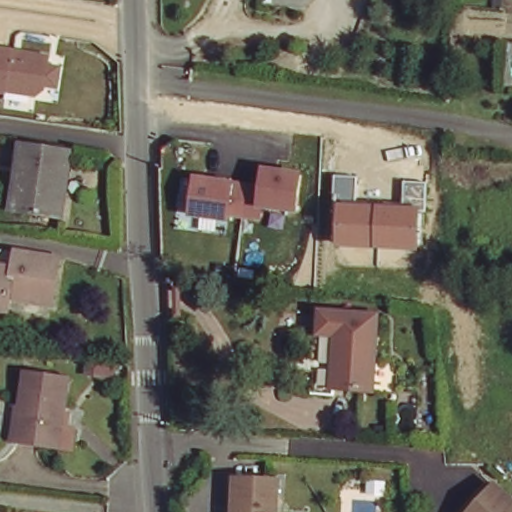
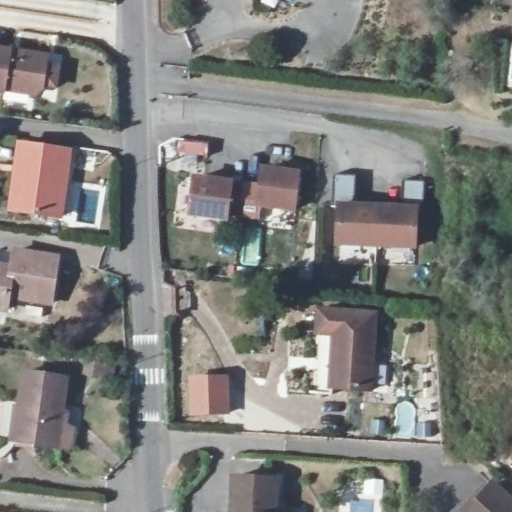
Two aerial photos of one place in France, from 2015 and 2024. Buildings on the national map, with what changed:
unchanged [(61,100),(0,92),(0,47),(63,57),(61,100)]
unchanged [(21,167),(24,143),(72,147),(69,214),(31,211),(17,210),(21,167)]
unchanged [(259,184),(263,166),(303,171),(296,212),(260,207),(257,221),(231,217),(230,222),(190,217),(193,175),(259,184)]
unchanged [(356,174),(355,202),(403,204),(404,179),(425,181),(424,212),(418,212),(415,249),(332,247),(335,173),(356,174)]
unchanged [(11,268),(14,252),(56,257),(49,306),(10,302),(9,310),(0,308),(0,267),(11,268)]
unchanged [(382,313),(375,390),(332,388),(336,336),(317,334),(318,308),(382,313)]
unchanged [(125,372),(123,384),(98,380),(100,368),(125,372)]
unchanged [(74,446),(60,445),(17,442),(20,374),(65,376),(62,425),(75,426),(74,446)]
new [(229,374),(230,415),(188,417),(187,376),(229,374)]
unchanged [(275,512),(232,512),(232,477),(275,476),(275,512)]
unchanged [(512,512),(474,512),(492,490),(512,504),(512,512)]

